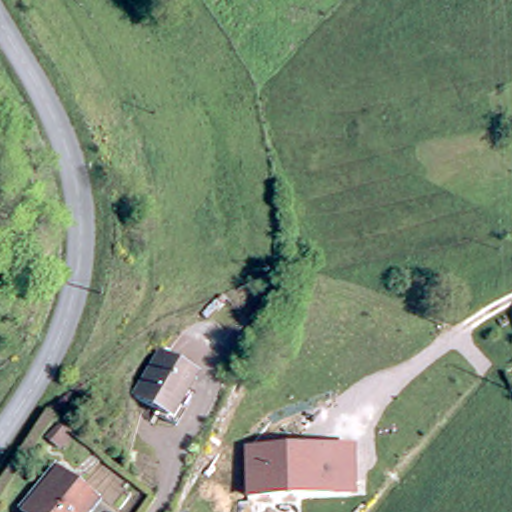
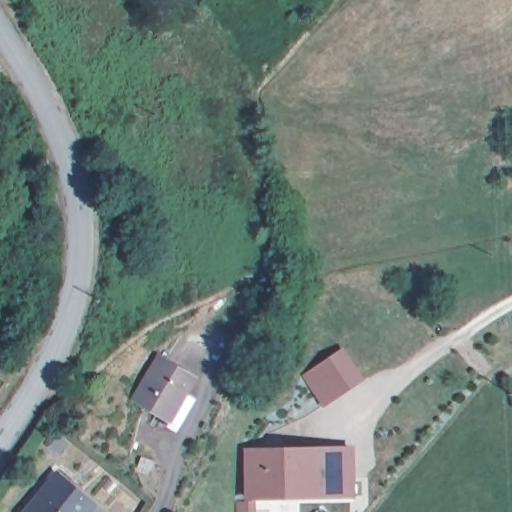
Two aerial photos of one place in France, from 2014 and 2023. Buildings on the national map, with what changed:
new [(344,345),(365,378),(324,405),(303,373),(344,345)]
unchanged [(158,352),(195,374),(185,390),(193,395),(175,426),(158,416),(160,411),(133,395),(158,352)]
unchanged [(52,428),(60,433),(50,448),(41,442),(52,428)]
unchanged [(285,448),(355,447),(355,495),(254,495),(250,496),(249,448),(285,448)]
unchanged [(85,512),(29,512),(56,473),(94,499),(85,512)]

